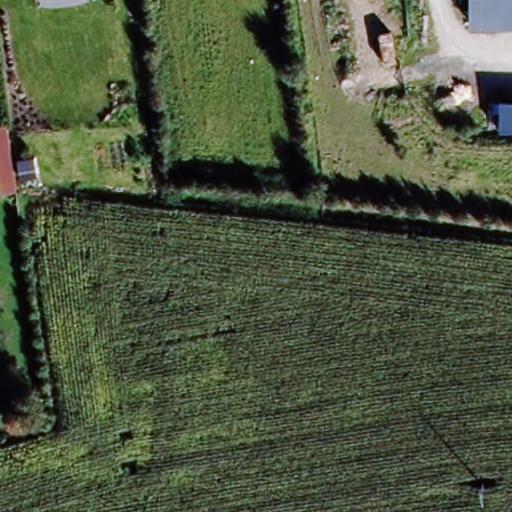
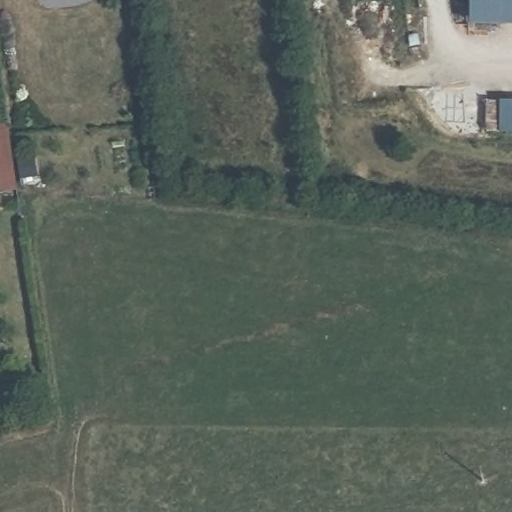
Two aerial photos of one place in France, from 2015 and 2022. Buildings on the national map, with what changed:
unchanged [(512,0),(512,26),(469,26),(469,8),(469,0),(512,0)]
unchanged [(498,102),(512,102),(512,134),(498,134),(498,102)]
unchanged [(5,136),(14,195),(0,197),(0,136),(5,136)]

